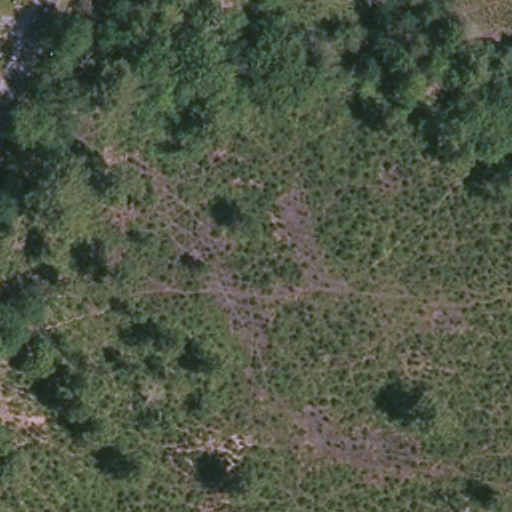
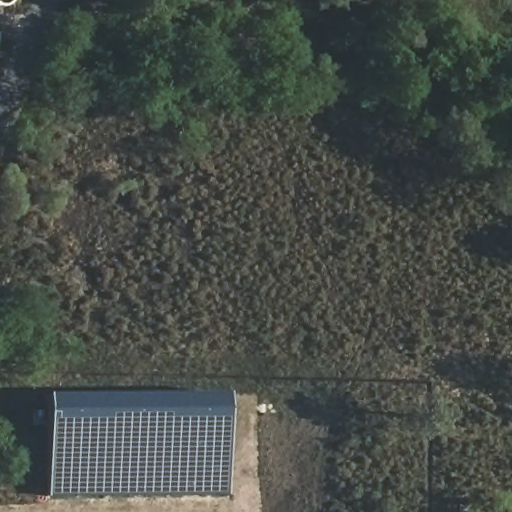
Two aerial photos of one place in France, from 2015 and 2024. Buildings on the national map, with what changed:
new [(41,399),(220,396),(227,496),(45,495),(41,399)]

